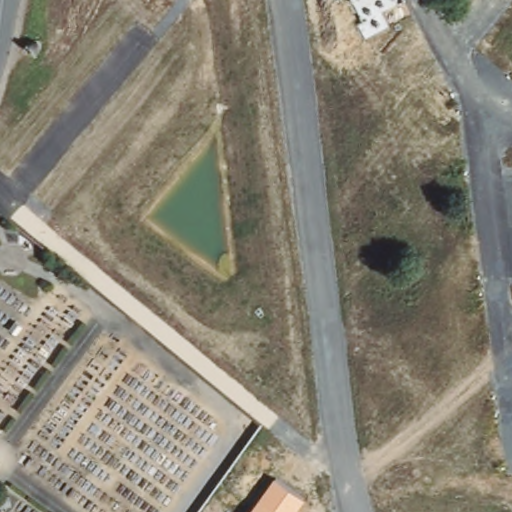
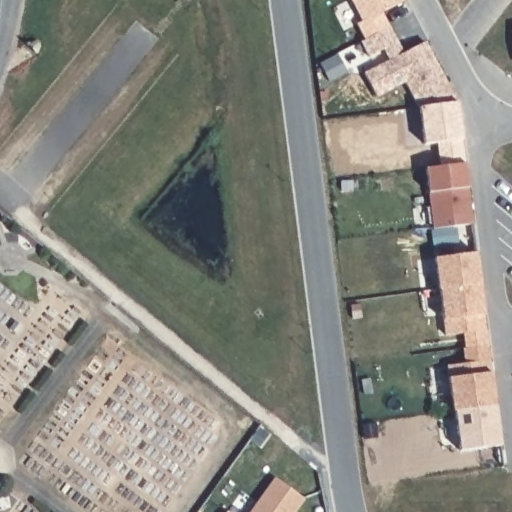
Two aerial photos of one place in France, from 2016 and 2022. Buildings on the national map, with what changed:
unchanged [(389,28),(365,39),(358,25),(363,22),(351,0),(402,0),(381,12),(389,28)]
new [(403,52),(426,42),(457,104),(419,109),(405,83),(391,89),(379,65),(387,60),(383,50),(367,57),(360,43),(365,39),(389,28),(403,52)]
new [(466,169),(474,230),(435,235),(427,174),(466,169)]
new [(478,259),(482,291),(441,296),(437,264),(478,259)]
new [(465,355),(490,352),(492,367),(498,412),(458,417),(456,418),(450,372),(467,370),(465,355)]
new [(498,412),(504,452),(463,457),(458,417),(498,412)]
unchanged [(304,501),(296,512),(249,512),(274,479),(304,501)]

